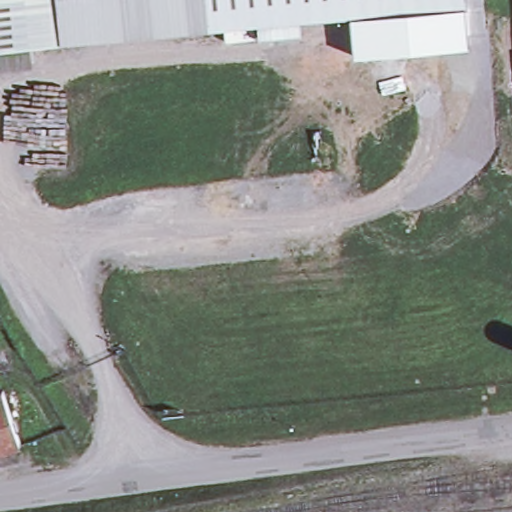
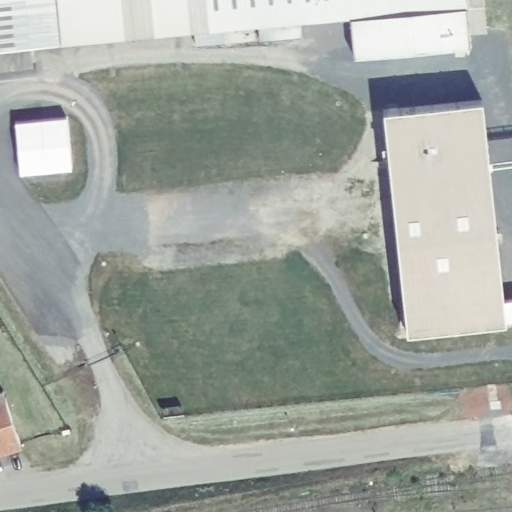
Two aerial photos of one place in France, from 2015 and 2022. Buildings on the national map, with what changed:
unchanged [(0,69),(0,49),(0,0),(56,0),(60,44),(30,46),(32,67),(0,69)]
unchanged [(467,7),(457,7),(254,26),(209,30),(60,44),(56,0),(467,0),(467,7)]
unchanged [(487,31),(471,32),(468,50),(354,57),(352,17),(467,7),(467,0),(484,0),(487,31)]
new [(488,157),(512,156),(512,162),(488,165),(502,298),(512,297),(512,319),(505,320),(505,323),(407,333),(383,110),(482,100),(488,157)]
unchanged [(0,445),(0,390),(16,440),(0,445)]

